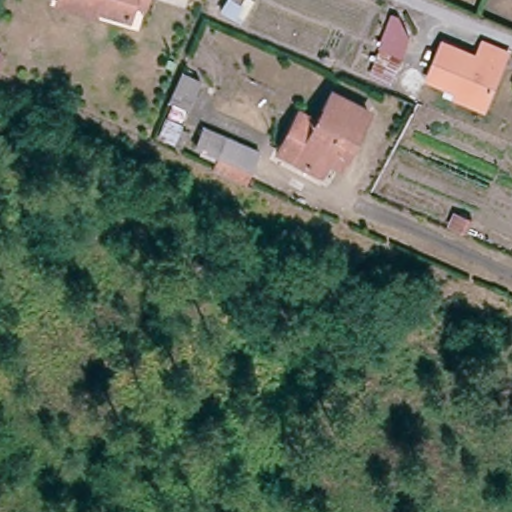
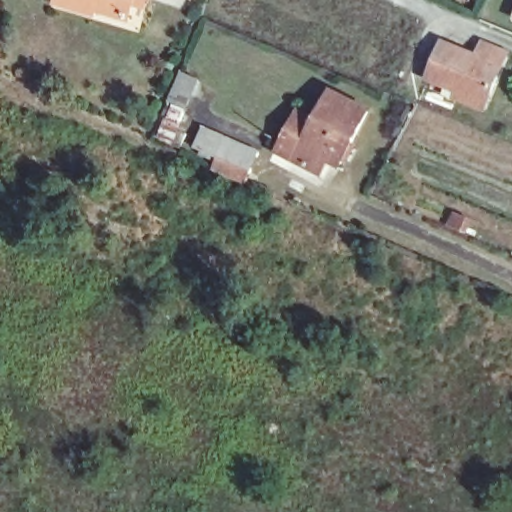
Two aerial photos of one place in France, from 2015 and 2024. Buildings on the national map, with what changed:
unchanged [(124,22),(90,12),(89,16),(52,5),(53,0),(141,0),(139,9),(128,6),(124,22)]
unchanged [(221,13),(225,6),(229,1),(229,0),(250,0),(254,2),(240,25),(221,13)]
unchanged [(380,50),(393,16),(400,19),(410,39),(402,59),(402,60),(391,85),(370,76),(382,50),(380,50)]
unchanged [(448,99),(450,92),(430,84),(445,47),(480,61),(485,49),(508,59),(502,71),(487,108),(485,114),(448,99)]
unchanged [(202,82),(190,112),(169,103),(181,73),(202,82)]
unchanged [(340,167),(328,161),(322,174),(278,152),(298,114),(315,123),(331,94),(369,114),(340,167)]
unchanged [(160,140),(167,120),(173,107),(183,111),(178,124),(182,126),(174,146),(160,140)]
unchanged [(245,185),(236,181),(214,171),(219,160),(198,151),(206,131),(259,154),(245,185)]

